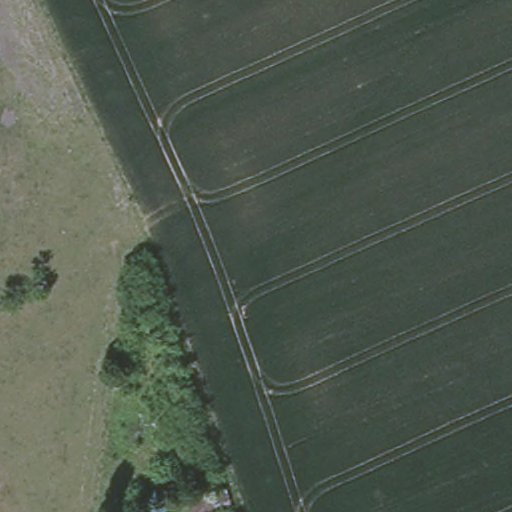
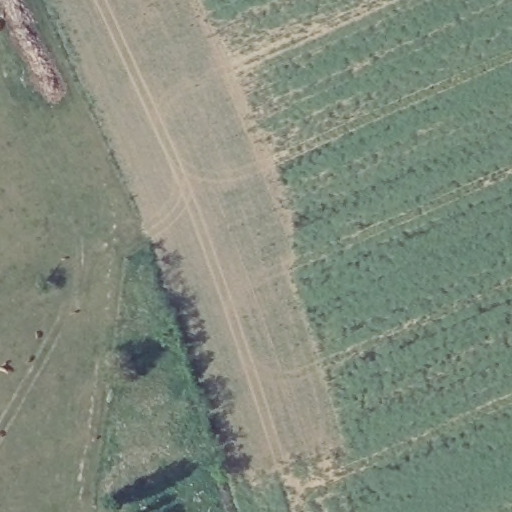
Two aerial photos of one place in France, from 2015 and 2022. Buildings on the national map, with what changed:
unchanged [(217,498),(204,503),(197,486),(212,478),(217,498)]

